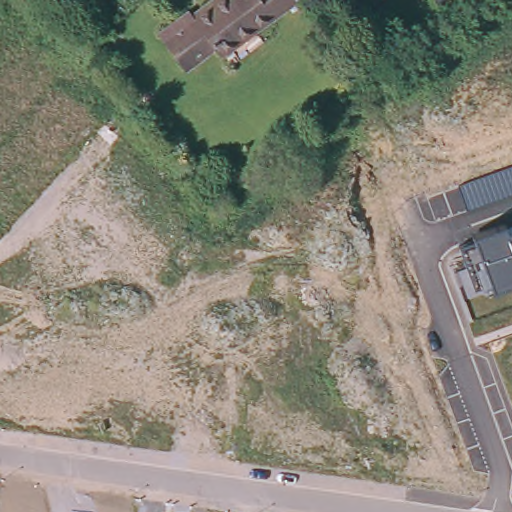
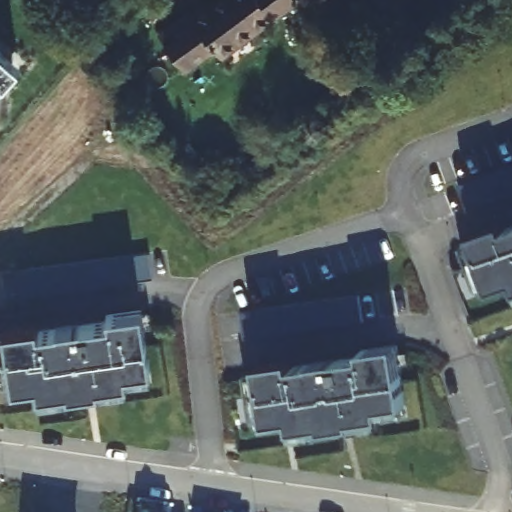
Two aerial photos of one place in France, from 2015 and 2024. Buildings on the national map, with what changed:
unchanged [(211,50),(185,70),(157,34),(185,12),(188,18),(212,0),(294,0),(218,59),(211,50)]
new [(17,65),(3,81),(0,79),(0,49),(17,65)]
unchanged [(512,195),(467,211),(457,185),(512,166),(512,195)]
unchanged [(503,223),(506,230),(512,228),(512,282),(492,290),(490,283),(474,289),(460,247),(475,242),(472,235),(503,223)]
unchanged [(140,252),(145,278),(25,296),(21,270),(140,252)]
unchanged [(357,293),(361,319),(242,336),(238,310),(357,293)]
new [(0,333),(0,330),(0,326),(33,321),(35,328),(53,325),(105,318),(103,311),(138,305),(147,366),(122,370),(124,383),(63,392),(63,388),(33,392),(32,382),(8,386),(7,380),(0,381),(0,334),(0,333)]
new [(257,370),(256,362),(290,357),(291,365),(310,362),(310,361),(361,355),(360,347),(395,342),(403,403),(379,406),(380,420),(320,428),(320,425),(290,429),(288,419),(265,422),(264,416),(247,418),(241,372),(257,370)]

